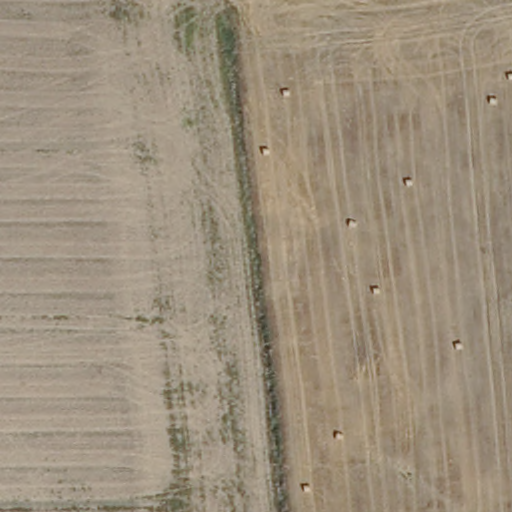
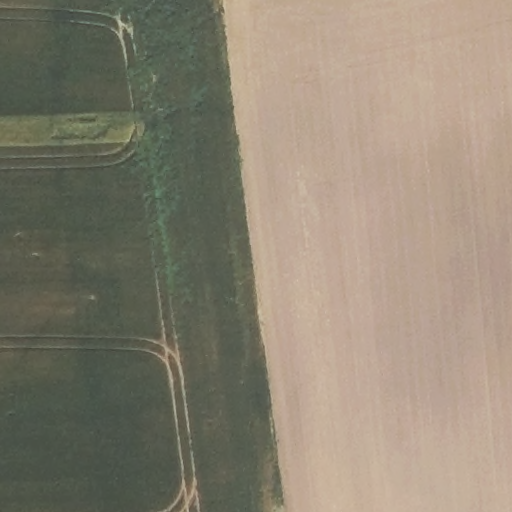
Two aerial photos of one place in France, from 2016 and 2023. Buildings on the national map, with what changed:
[]

